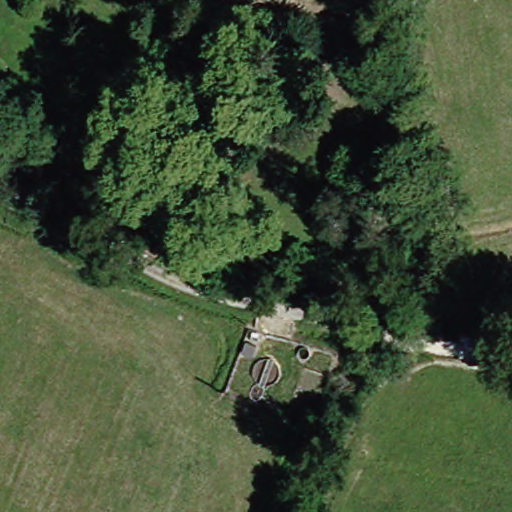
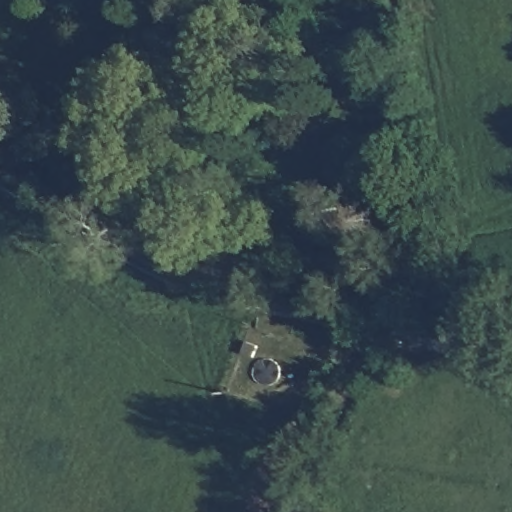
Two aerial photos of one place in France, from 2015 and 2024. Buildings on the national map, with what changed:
unchanged [(266,339),(257,360),(246,356),(254,335),(266,339)]

